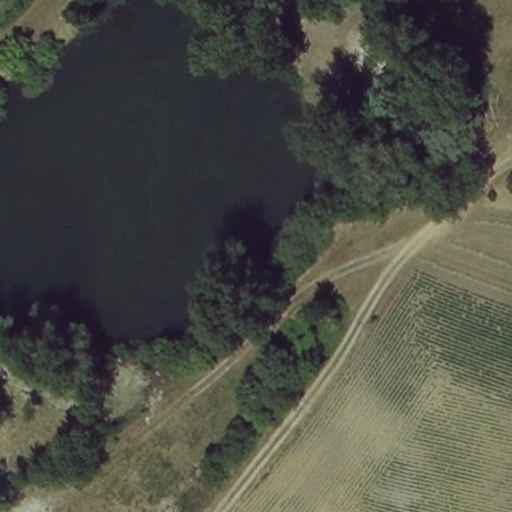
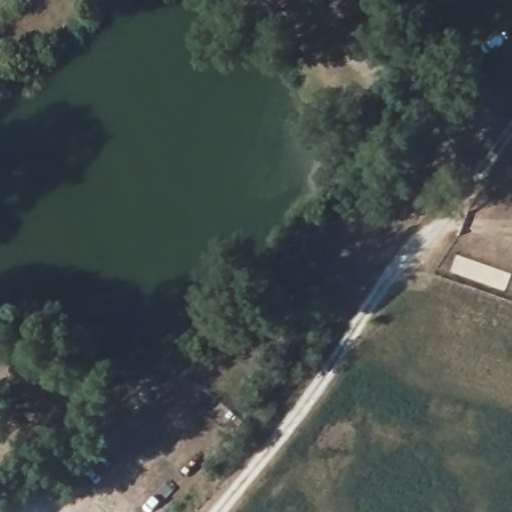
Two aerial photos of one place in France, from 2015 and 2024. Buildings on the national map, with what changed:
unchanged [(392,50),(380,68),(356,49),(370,32),(392,50)]

